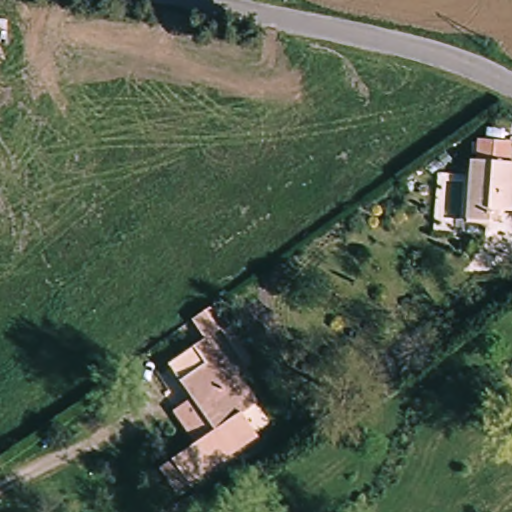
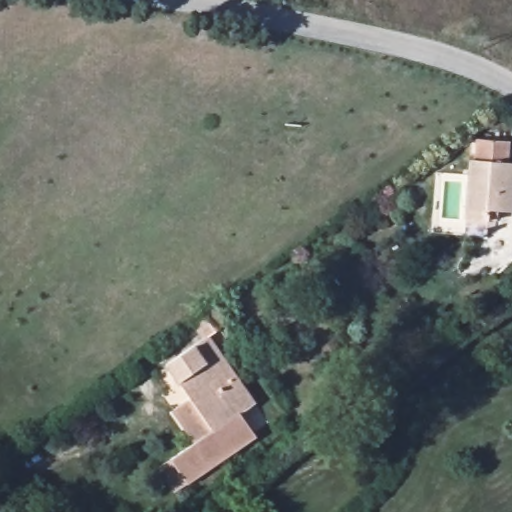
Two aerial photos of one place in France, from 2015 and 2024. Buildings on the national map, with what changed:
unchanged [(492,230),(470,228),(472,213),(475,156),(477,138),(485,138),(487,126),(504,127),(503,138),(510,139),(510,159),(512,159),(512,206),(506,206),(505,224),(492,230)]
unchanged [(176,378),(168,382),(157,365),(164,360),(202,335),(187,315),(212,297),(226,320),(248,357),(240,361),(217,325),(217,324),(207,333),(253,404),(238,414),(253,437),(182,482),(165,457),(192,439),(170,406),(187,395),(176,378)]

